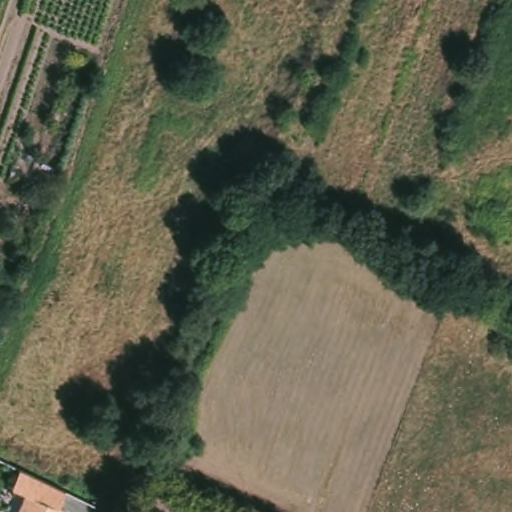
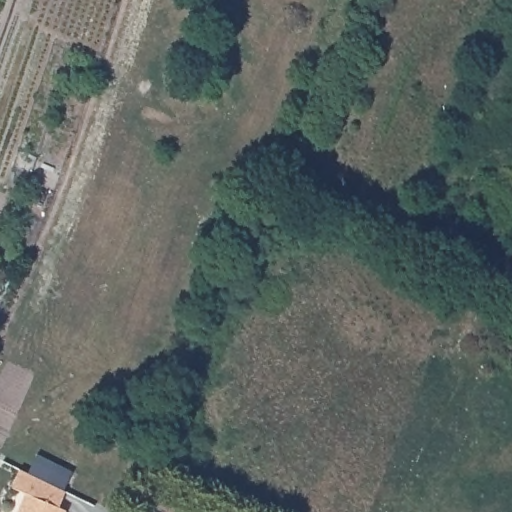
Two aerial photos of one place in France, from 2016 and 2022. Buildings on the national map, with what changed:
unchanged [(56,512),(17,512),(23,498),(56,512)]

